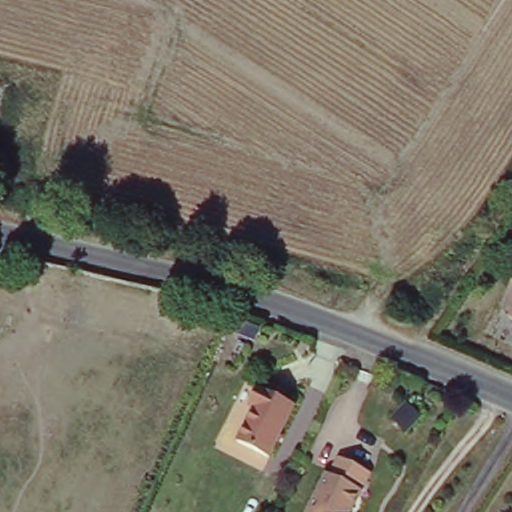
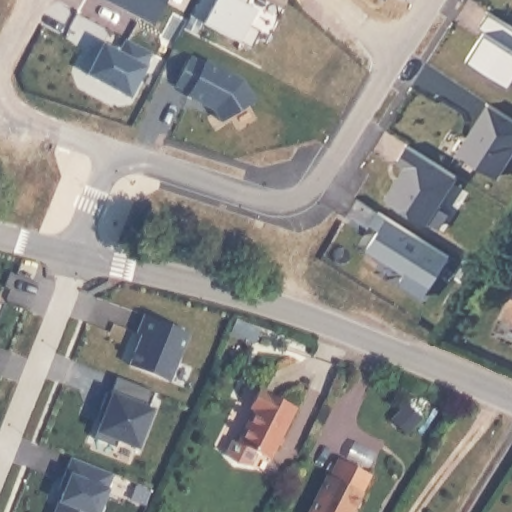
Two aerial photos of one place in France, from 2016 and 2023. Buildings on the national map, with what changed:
new [(107,0),(166,0),(153,24),(107,0)]
new [(250,0),(247,6),(256,11),(249,25),(262,31),(253,49),(205,25),(218,0),(250,0)]
new [(372,0),(379,0),(377,4),(372,0)]
new [(511,84),(469,58),(482,38),(487,30),(492,33),(481,26),(490,11),(512,25),(512,82),(511,84)]
new [(130,97),(89,75),(104,45),(119,53),(126,40),(152,53),(130,97)]
new [(217,110),(218,108),(209,104),(208,105),(190,96),(192,93),(178,86),(194,58),(207,65),(208,61),(244,81),(257,101),(226,124),(217,110)]
new [(497,176),(459,151),(489,104),(512,118),(512,152),(497,176)]
new [(457,176),(431,218),(391,193),(407,166),(399,161),(409,145),(457,176)]
new [(449,255),(423,296),(400,281),(406,272),(369,248),(380,230),(372,224),(380,212),(449,255)]
unchanged [(501,311),(512,288),(512,316),(501,311)]
new [(192,334),(173,385),(150,378),(152,371),(132,363),(143,339),(135,336),(144,314),(192,334)]
new [(94,422),(98,411),(105,393),(109,395),(116,378),(153,393),(146,409),(150,411),(136,448),(116,441),(114,448),(93,440),(104,413),(99,424),(94,422)]
unchanged [(299,400),(272,451),(242,437),(258,404),(251,400),(260,381),(299,400)]
unchanged [(326,470),(330,472),(339,453),(369,468),(347,512),(306,512),(326,470)]
new [(61,493),(56,491),(69,459),(111,475),(96,512),(54,512),(61,493)]

